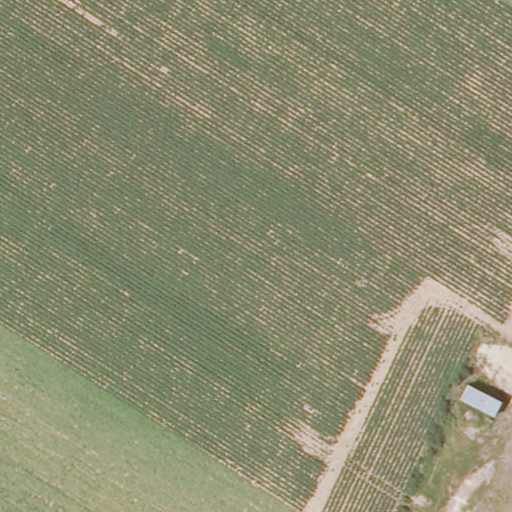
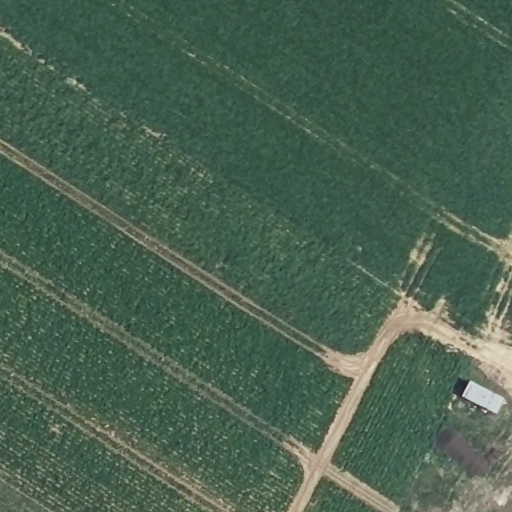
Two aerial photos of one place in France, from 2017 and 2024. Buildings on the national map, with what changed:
unchanged [(505,401),(498,414),(464,397),(472,384),(505,401)]

